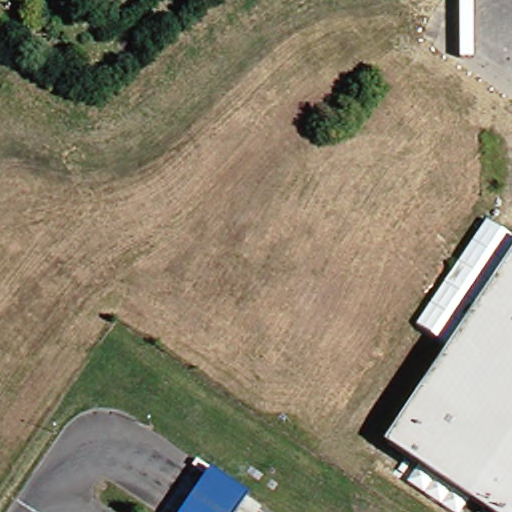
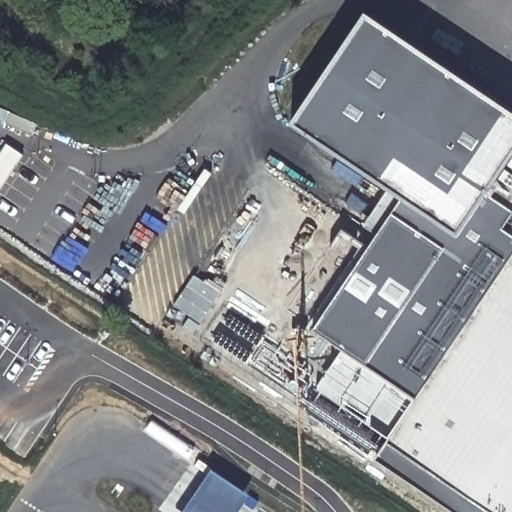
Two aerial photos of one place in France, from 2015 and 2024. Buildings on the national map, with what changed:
new [(418,402),(313,330),(401,198),(292,123),(367,13),(512,111),(512,213),(505,224),(512,234),(512,264),(479,313),(418,402)]
unchanged [(479,313),(512,264),(512,512),(483,512),(387,448),(479,313)]
new [(340,349),(418,402),(393,440),(317,387),(340,349)]
unchanged [(239,512),(182,512),(212,468),(252,494),(239,512)]

